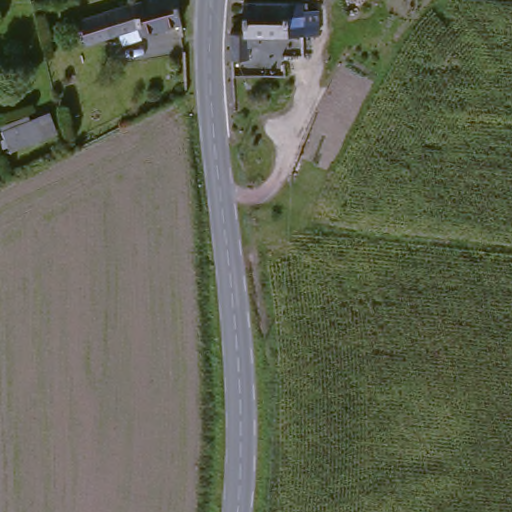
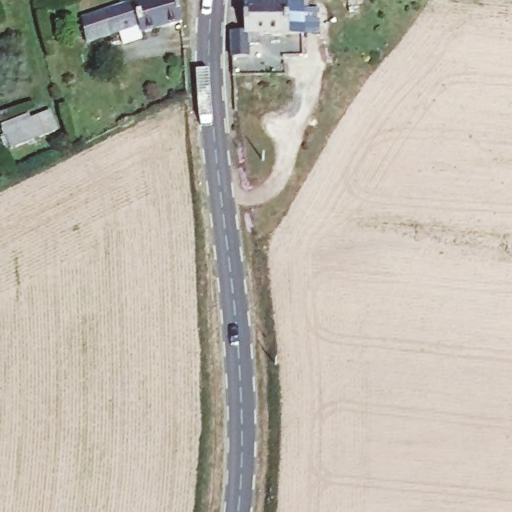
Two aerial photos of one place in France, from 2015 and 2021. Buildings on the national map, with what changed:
unchanged [(126,28),(91,36),(86,10),(121,0),(184,0),(188,20),(147,29),(148,34),(128,39),(126,28)]
unchanged [(288,49),(286,29),(254,29),(256,51),(236,51),(234,26),(242,25),(249,25),(249,0),(309,0),(310,48),(288,49)]
unchanged [(11,126),(41,111),(53,105),(62,123),(51,128),(19,144),(11,126)]

